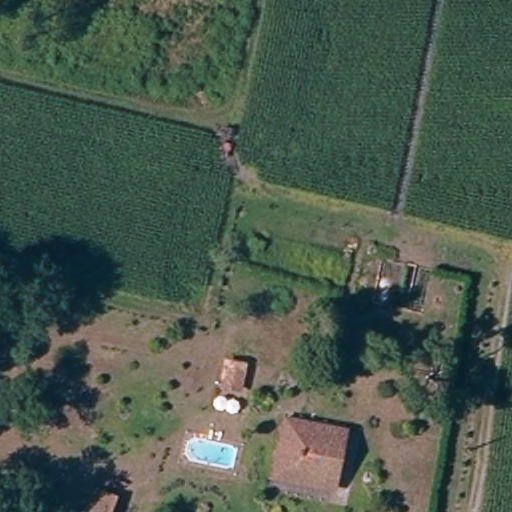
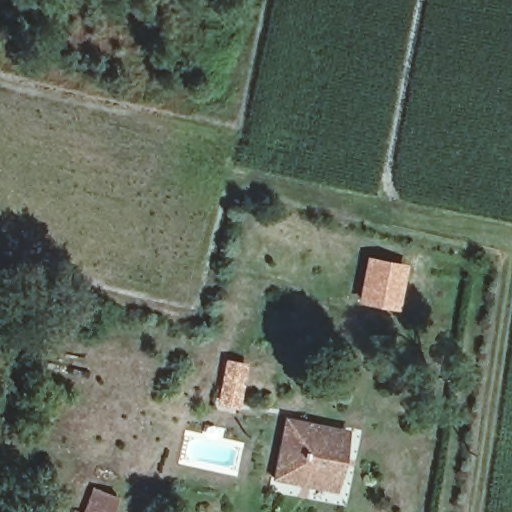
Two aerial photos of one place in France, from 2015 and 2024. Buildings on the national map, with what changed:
new [(366,255),(407,263),(398,309),(358,302),(366,255)]
unchanged [(337,490),(275,480),(285,418),(349,429),(337,490)]
unchanged [(110,512),(83,512),(91,489),(116,497),(110,512)]

